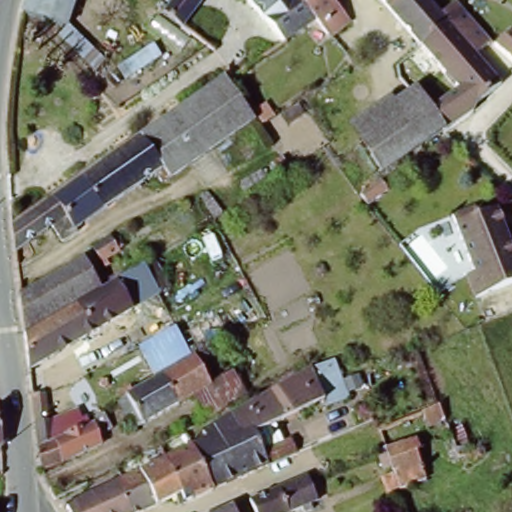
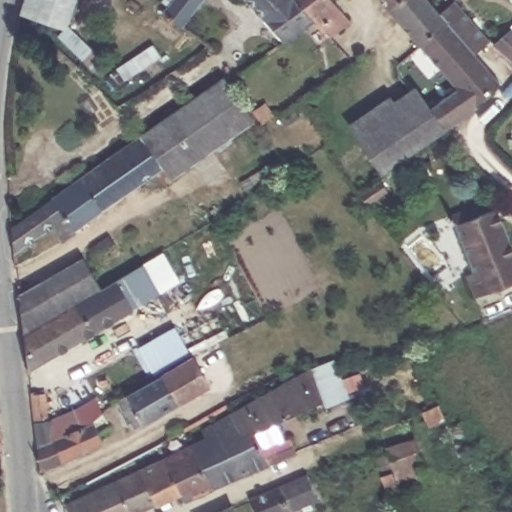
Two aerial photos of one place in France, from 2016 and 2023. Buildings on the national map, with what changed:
unchanged [(21,18),(26,0),(75,0),(62,34),(21,18)]
unchanged [(167,6),(172,0),(205,0),(181,31),(180,30),(178,29),(167,20),(160,15),(165,8),(167,6)]
unchanged [(301,36),(300,38),(290,44),(282,49),(236,0),(291,0),(301,14),(308,23),(312,29),(304,34),(301,36)]
unchanged [(301,14),(291,0),(326,0),(345,25),(323,43),(312,29),(308,23),(301,14)]
unchanged [(368,0),(422,0),(429,9),(502,91),(471,116),(451,93),(368,0)]
unchanged [(455,0),(491,42),(471,56),(437,18),(455,0)]
unchanged [(510,28),(512,30),(512,59),(495,44),(510,28)]
unchanged [(151,143),(146,137),(220,79),(255,123),(208,159),(183,179),(181,177),(151,143)]
unchanged [(418,119),(451,93),(471,116),(437,143),(418,119)]
unchanged [(400,96),(418,119),(437,143),(438,144),(429,151),(416,160),(405,168),(403,169),(402,170),(401,170),(395,162),(381,144),(381,143),(378,139),(370,126),(373,124),(380,119),(384,116),(380,111),(400,96)]
unchanged [(394,175),(393,176),(376,188),(340,143),(380,111),(384,116),(380,119),(373,124),(370,126),(378,139),(381,143),(381,144),(395,162),(401,170),(394,175)]
unchanged [(20,223),(146,137),(151,143),(181,177),(170,184),(162,173),(72,238),(75,243),(60,254),(47,235),(22,252),(20,223)]
unchanged [(476,266),(460,223),(498,209),(512,249),(512,283),(475,294),(467,270),(476,266)]
unchanged [(98,245),(113,234),(123,249),(107,259),(98,245)]
unchanged [(22,334),(18,303),(77,264),(99,296),(107,290),(110,294),(105,296),(32,343),(23,348),(23,343),(22,334)]
unchanged [(152,301),(27,381),(26,369),(25,354),(23,348),(32,343),(105,296),(110,294),(107,290),(110,289),(135,274),(152,301)]
unchanged [(201,416),(188,424),(180,409),(148,428),(145,423),(138,427),(124,402),(125,400),(132,396),(170,374),(178,369),(180,368),(196,358),(197,358),(203,368),(215,388),(235,377),(237,382),(243,392),(243,393),(201,416)]
unchanged [(225,413),(243,402),(297,371),(305,366),(310,364),(330,404),(321,409),(317,401),(256,432),(255,428),(251,422),(236,430),(232,432),(230,428),(223,414),(225,413)]
unchanged [(442,396),(443,399),(448,415),(430,423),(422,402),(441,394),(442,396)]
unchanged [(48,396),(50,432),(95,424),(100,454),(62,465),(62,472),(36,479),(26,401),(48,396)]
unchanged [(206,439),(201,426),(217,417),(223,414),(230,428),(232,432),(236,430),(251,422),(255,428),(256,432),(257,434),(264,448),(271,462),(271,463),(263,466),(248,473),(245,474),(217,487),(216,487),(203,459),(195,444),(206,439)]
unchanged [(195,444),(203,459),(216,487),(201,494),(186,500),(181,502),(180,500),(180,499),(175,492),(181,484),(168,457),(195,444)]
unchanged [(428,487),(397,499),(391,482),(387,467),(385,460),(383,456),(414,444),(428,487)]
unchanged [(168,457),(181,484),(175,492),(172,493),(160,498),(152,502),(145,505),(136,509),(120,477),(168,457)]
unchanged [(68,473),(72,482),(59,489),(54,481),(68,473)]
unchanged [(248,499),(256,496),(272,489),(303,477),(303,476),(315,502),(289,512),(251,512),(246,502),(245,499),(248,499)]
unchanged [(95,509),(89,512),(76,512),(70,503),(95,489),(120,477),(136,509),(130,512),(129,512),(97,512),(95,509)]

